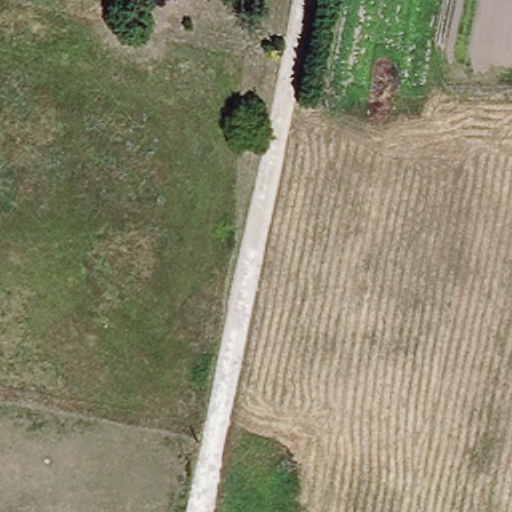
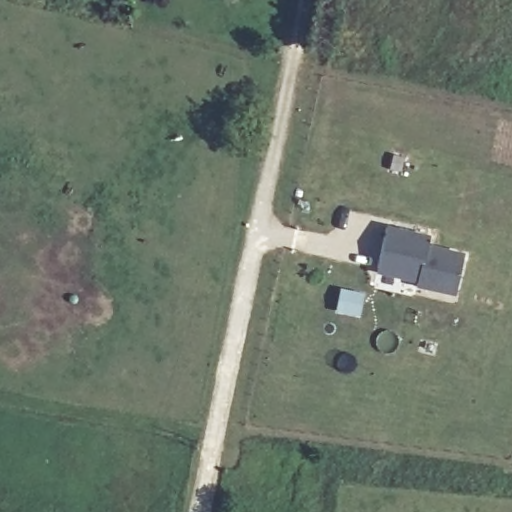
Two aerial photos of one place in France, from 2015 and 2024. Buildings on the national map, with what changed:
new [(432,235),(429,245),(465,253),(455,298),(413,289),(414,283),(375,275),(384,225),(432,235)]

